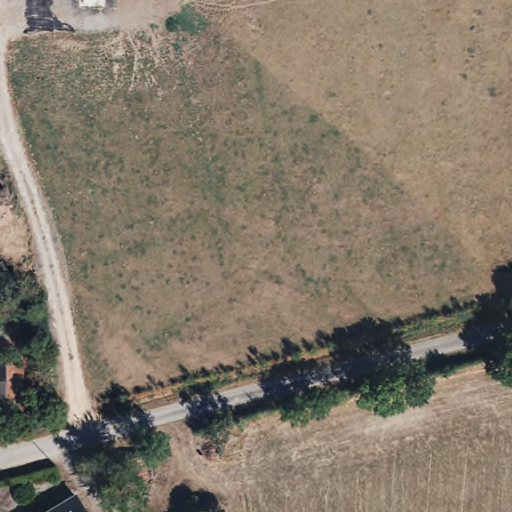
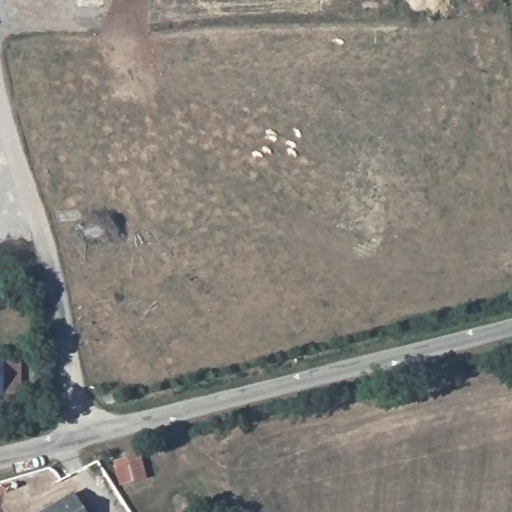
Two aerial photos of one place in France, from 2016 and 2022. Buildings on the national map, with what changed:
unchanged [(0,365),(8,365),(8,393),(0,393),(0,365)]
unchanged [(88,512),(35,512),(74,488),(88,512)]

